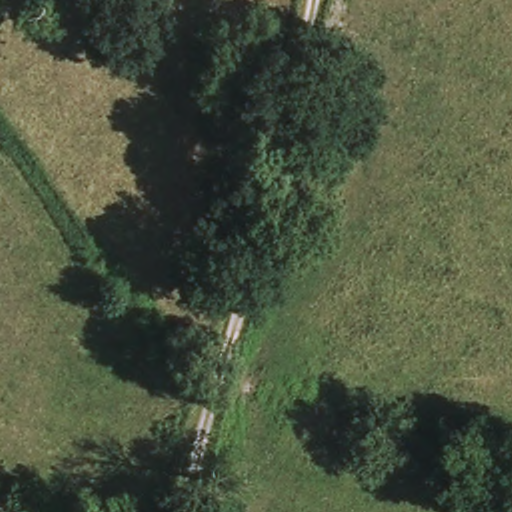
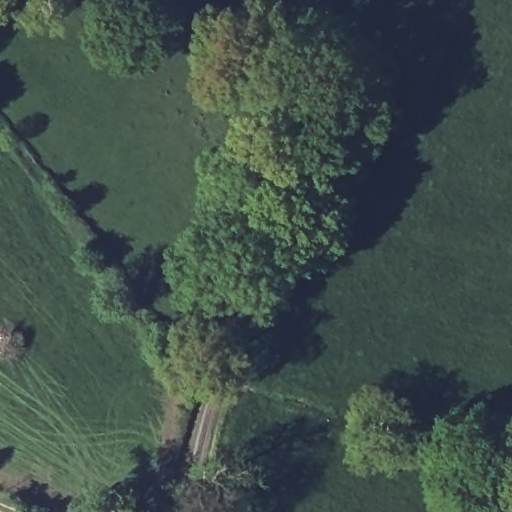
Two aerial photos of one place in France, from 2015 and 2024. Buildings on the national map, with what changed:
[]

